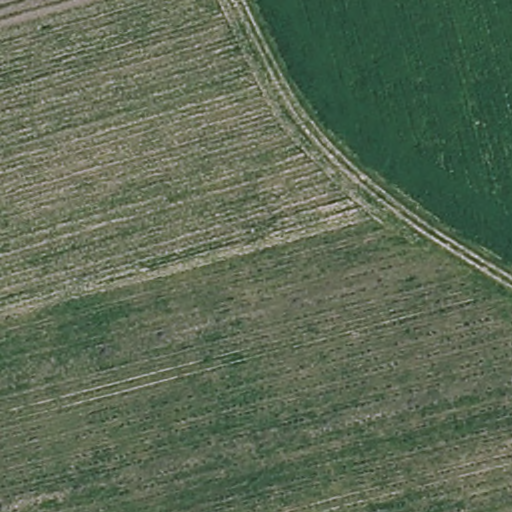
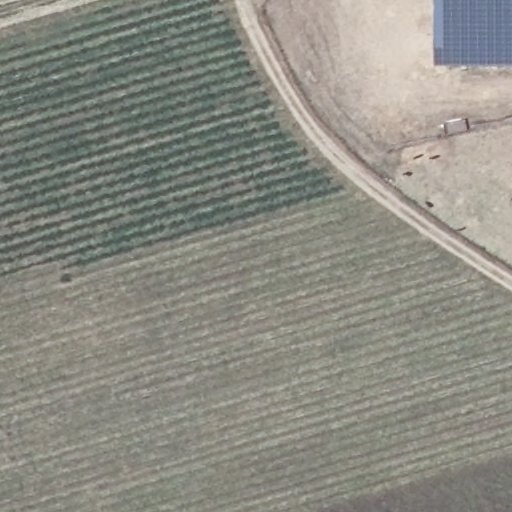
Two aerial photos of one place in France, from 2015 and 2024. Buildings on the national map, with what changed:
new [(436,68),(435,0),(512,0),(512,67),(436,68)]

